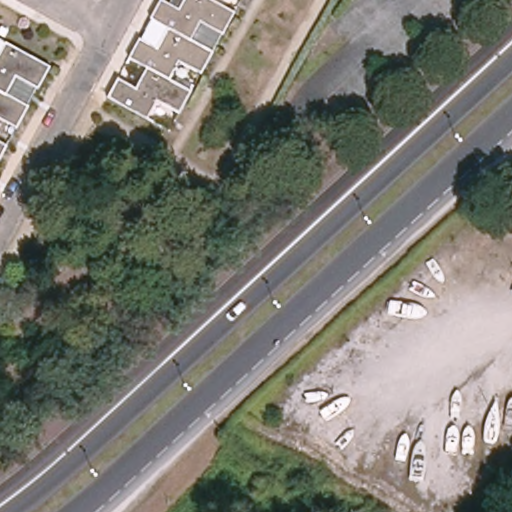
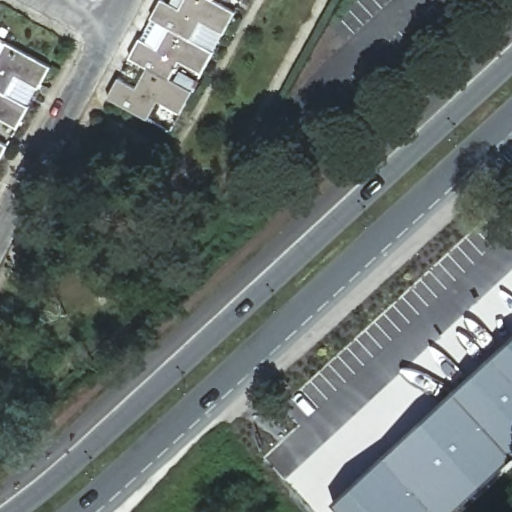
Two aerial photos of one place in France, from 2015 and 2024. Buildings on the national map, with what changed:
unchanged [(222,33),(201,21),(190,39),(170,28),(152,18),(162,0),(163,0),(180,9),(185,0),(213,0),(234,11),(222,33)]
unchanged [(190,39),(212,51),(201,72),(179,60),(169,79),(149,68),(130,58),(140,39),(159,49),(170,28),(190,39)]
unchanged [(6,42),(50,66),(38,87),(15,74),(5,93),(0,90),(0,53),(6,42)]
unchanged [(169,79),(191,90),(179,111),(157,99),(147,118),(108,96),(119,78),(137,89),(149,68),(169,79)]
unchanged [(5,93),(28,105),(17,126),(0,118),(0,90),(5,93)]
unchanged [(7,145),(0,157),(0,141),(7,145)]
new [(337,509),(512,347),(512,456),(452,512),(339,512),(337,509)]

